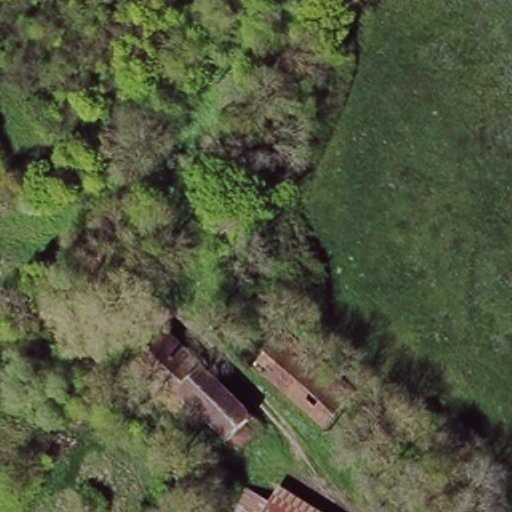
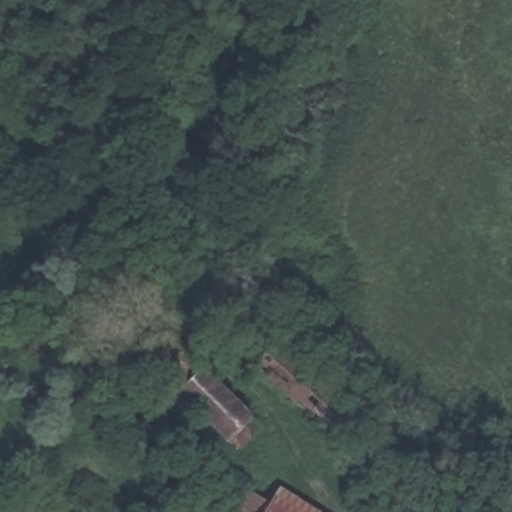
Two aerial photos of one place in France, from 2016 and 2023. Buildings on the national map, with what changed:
unchanged [(271,423),(241,463),(189,416),(175,405),(166,403),(128,364),(159,328),(271,423)]
unchanged [(354,405),(331,436),(256,373),(278,346),(283,340),(354,405)]
unchanged [(281,509),(287,512),(265,512),(271,502),(281,509)]
unchanged [(250,512),(233,512),(238,504),(250,512)]

